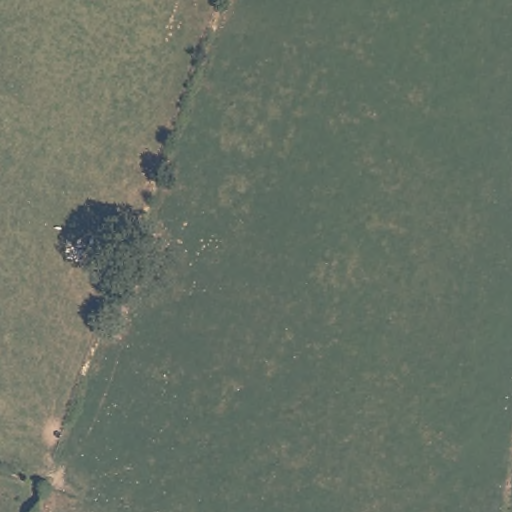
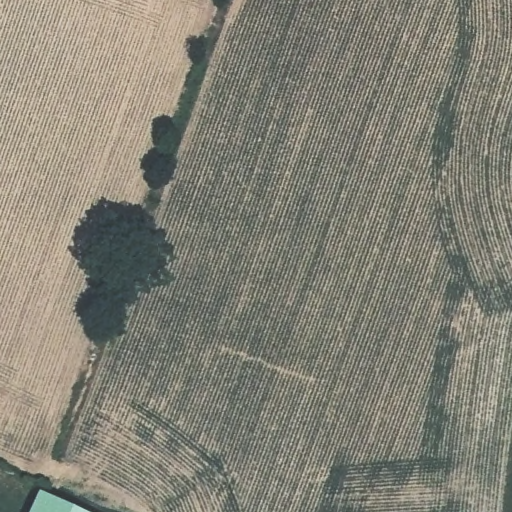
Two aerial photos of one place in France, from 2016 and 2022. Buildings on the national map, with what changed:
new [(42,494),(82,512),(34,512),(42,494)]

